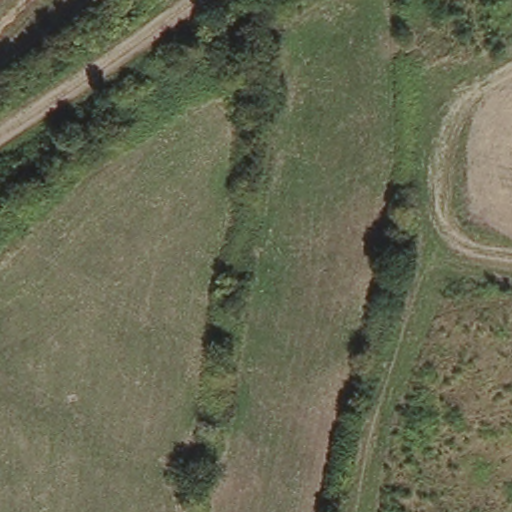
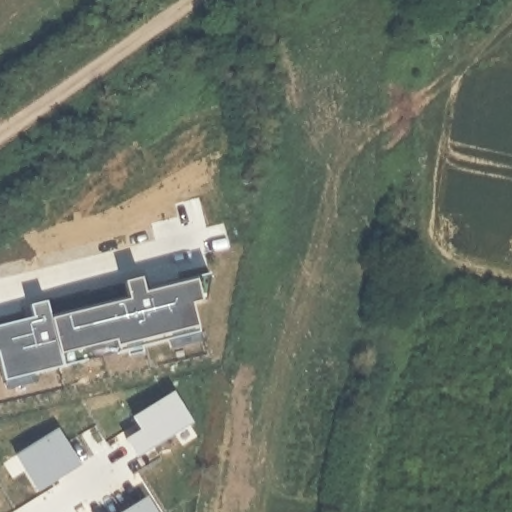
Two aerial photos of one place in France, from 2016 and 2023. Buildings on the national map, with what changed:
new [(33,319),(30,306),(45,302),(50,319),(128,298),(123,282),(140,278),(145,293),(196,279),(201,299),(190,303),(199,341),(170,351),(167,340),(32,374),(32,381),(8,388),(0,361),(0,328),(33,319)]
new [(172,392),(193,422),(135,457),(124,439),(140,429),(133,416),(172,392)]
new [(58,429),(80,464),(37,491),(16,455),(58,429)]
new [(157,512),(122,512),(146,496),(157,512)]

